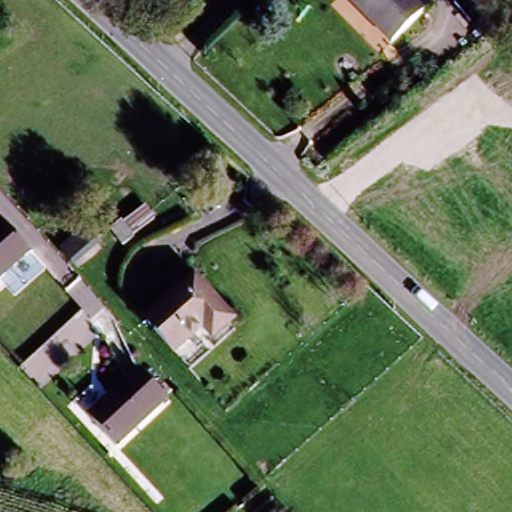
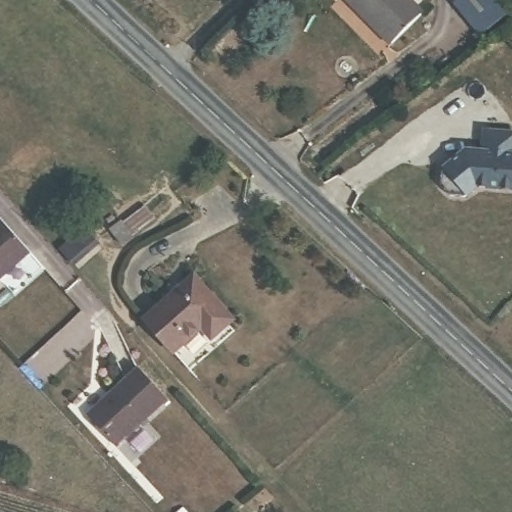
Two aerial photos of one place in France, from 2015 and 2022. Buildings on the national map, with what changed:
unchanged [(385,40),(347,0),(415,0),(423,9),(385,40)]
unchanged [(483,22),(471,7),(480,0),(512,0),(512,20),(494,35),(483,22)]
new [(441,170),(440,169),(463,151),(479,152),(481,131),(512,136),(512,196),(475,191),(464,199),(463,198),(461,200),(447,198),(438,186),(439,172),(441,170)]
unchanged [(0,274),(0,222),(25,250),(0,274)]
unchanged [(175,347),(145,315),(192,269),(232,311),(203,338),(194,329),(175,347)]
unchanged [(110,393),(136,369),(163,400),(117,443),(93,419),(87,414),(110,393)]

